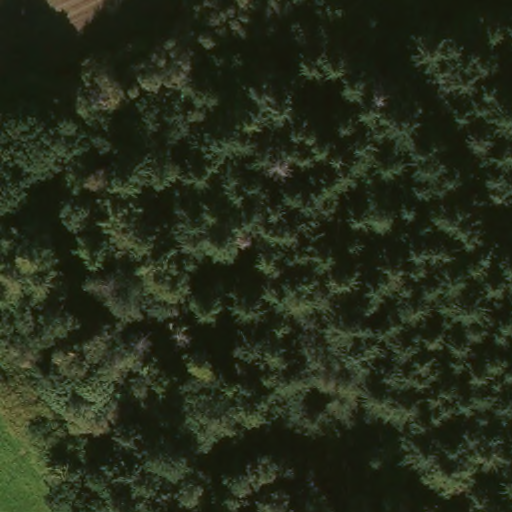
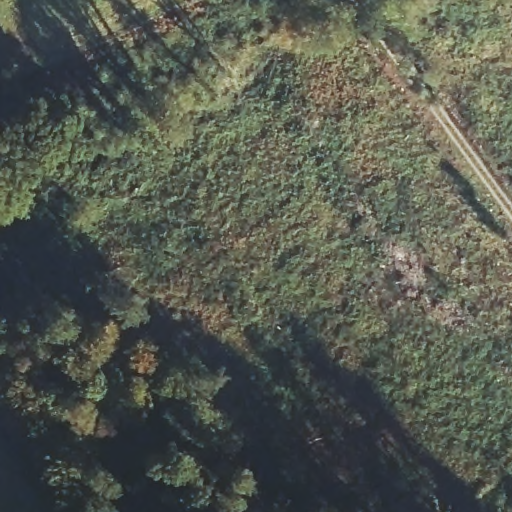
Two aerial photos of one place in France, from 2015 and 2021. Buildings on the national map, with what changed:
[]

